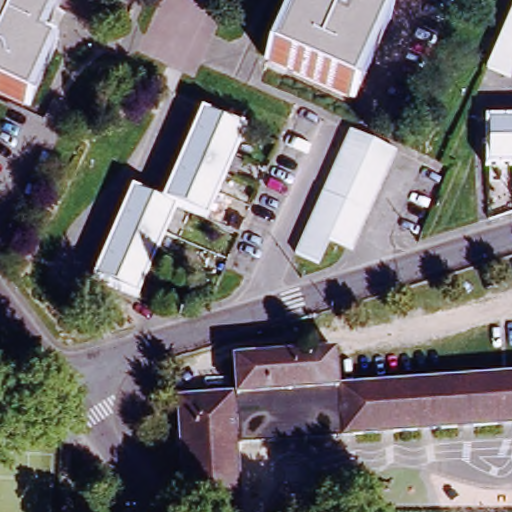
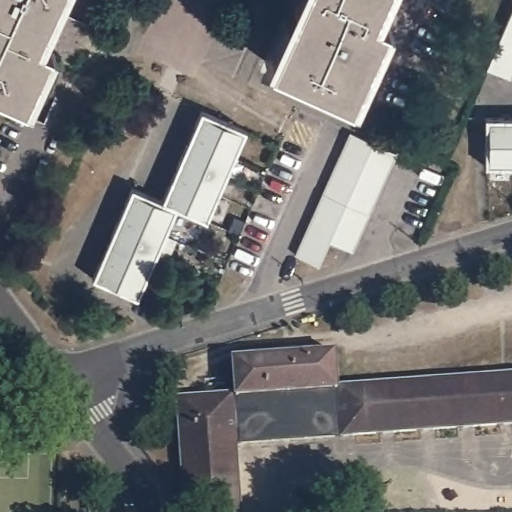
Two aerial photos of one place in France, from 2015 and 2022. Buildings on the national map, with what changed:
unchanged [(38,50),(52,56),(27,110),(0,97),(0,0),(61,0),(38,50)]
unchanged [(379,14),(392,20),(357,99),(267,59),(292,0),(385,0),(379,14)]
unchanged [(487,67),(512,0),(512,75),(487,67)]
unchanged [(207,221),(176,207),(137,299),(92,279),(130,189),(162,202),(199,110),(245,129),(207,221)]
unchanged [(484,170),(484,122),(512,121),(512,169),(484,170)]
unchanged [(351,252),(327,242),(316,267),(293,256),(348,133),(395,154),(351,252)]
unchanged [(237,445),(241,512),(186,512),(178,399),(236,394),(235,357),(335,351),(339,387),(512,375),(512,428),(237,445)]

